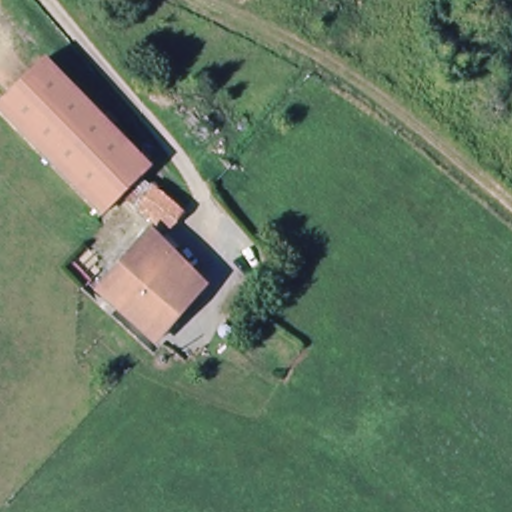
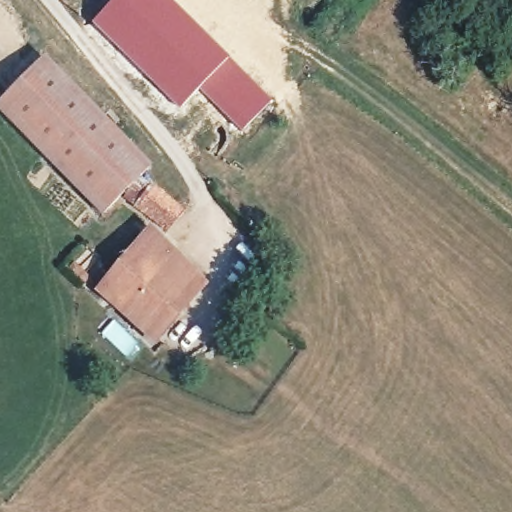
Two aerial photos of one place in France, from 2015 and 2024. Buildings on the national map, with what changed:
new [(115,0),(169,0),(191,20),(272,102),(241,135),(198,94),(179,112),(91,23),(115,0)]
unchanged [(146,172),(96,217),(0,113),(0,100),(43,61),(146,172)]
unchanged [(149,191),(178,217),(162,236),(132,209),(122,199),(138,181),(149,191)]
unchanged [(99,293),(149,237),(204,287),(157,344),(99,293)]

